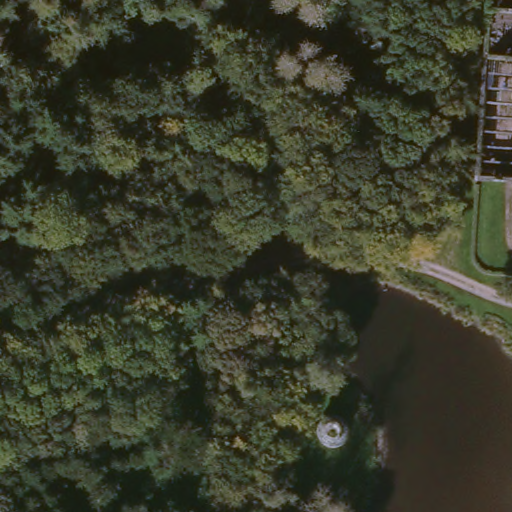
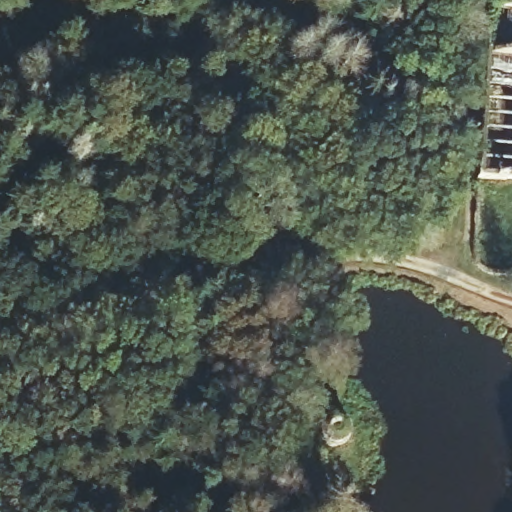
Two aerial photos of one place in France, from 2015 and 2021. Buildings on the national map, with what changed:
unchanged [(331,424),(337,428),(339,434),(341,439),(339,444),(336,448),(332,451),(326,451),(323,450),(318,448),(316,445),(315,440),(314,435),(314,431),(316,427),(325,423),(331,424)]

